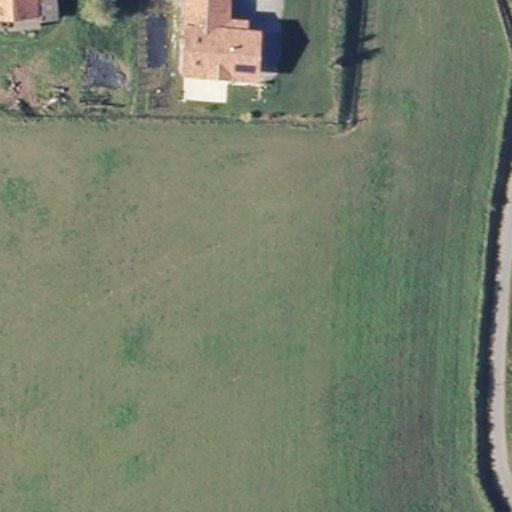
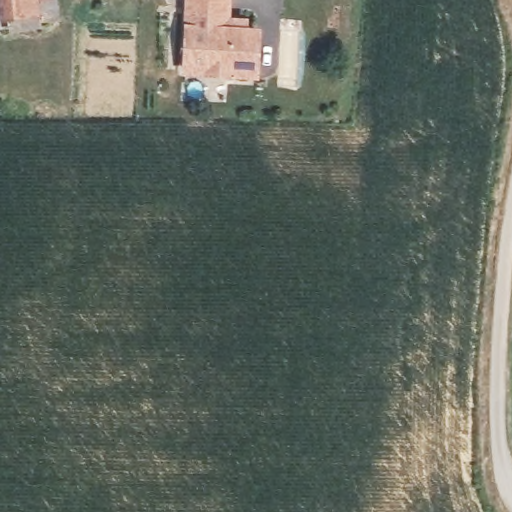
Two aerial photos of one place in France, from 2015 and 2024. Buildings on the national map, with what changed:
unchanged [(37,7),(52,7),(52,25),(38,26),(39,31),(9,31),(9,21),(2,22),(2,0),(37,0),(37,7)]
unchanged [(255,34),(253,73),(209,70),(208,75),(183,73),(188,9),(189,0),(228,0),(227,10),(226,32),(255,34)]

